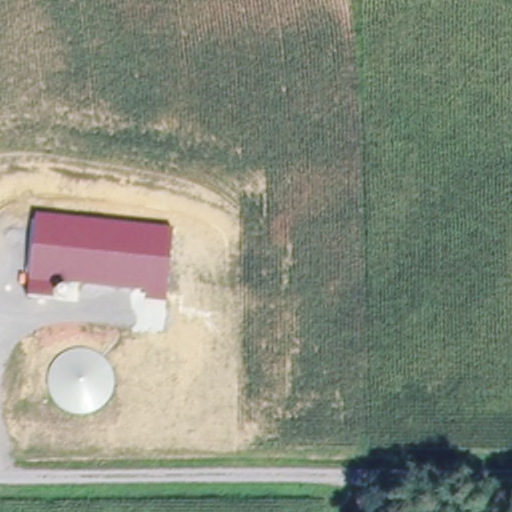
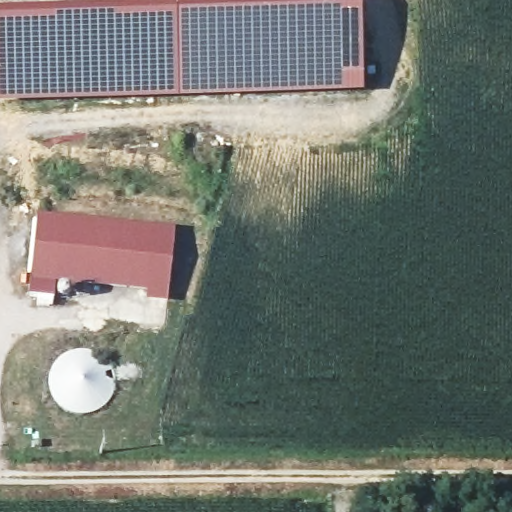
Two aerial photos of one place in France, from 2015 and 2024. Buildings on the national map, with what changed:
new [(0,105),(0,14),(359,1),(364,93),(0,105)]
unchanged [(28,297),(29,281),(36,213),(174,227),(166,301),(145,300),(146,290),(53,282),(52,299),(28,297)]

